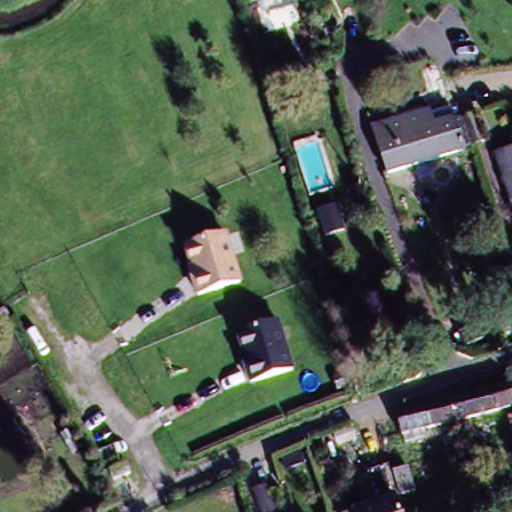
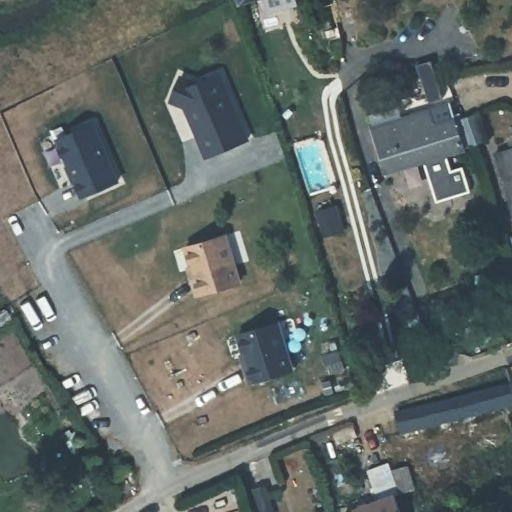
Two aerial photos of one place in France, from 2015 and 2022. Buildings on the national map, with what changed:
demolished [(253,0),(230,7),(227,0),(253,0)]
unchanged [(271,0),(244,9),(241,0),(271,0)]
unchanged [(433,61),(437,72),(442,86),(444,91),(446,96),(446,97),(432,102),(423,76),(419,66),(433,61)]
new [(200,82),(220,71),(250,140),(207,159),(186,107),(171,100),(181,73),(200,82)]
unchanged [(355,85),(358,97),(347,100),(345,88),(355,85)]
unchanged [(430,109),(434,117),(450,112),(451,112),(463,149),(462,149),(386,174),(371,126),(430,109)]
unchanged [(461,124),(477,118),(485,142),(468,147),(461,124)]
new [(120,182),(82,199),(54,136),(94,119),(120,182)]
new [(447,154),(451,172),(463,169),(469,192),(436,202),(424,162),(447,154)]
unchanged [(498,161),(512,156),(512,198),(498,161)]
new [(336,206),(343,231),(325,236),(317,211),(336,206)]
unchanged [(242,284),(200,296),(186,246),(228,232),(242,284)]
unchanged [(295,368),(249,381),(235,335),(280,320),(295,368)]
unchanged [(420,430),(405,435),(393,409),(431,396),(505,371),(511,390),(436,414),(417,421),(420,430)]
unchanged [(115,477),(109,468),(122,460),(127,469),(115,477)]
unchanged [(347,509),(379,497),(369,467),(387,461),(404,512),(348,512),(347,509)]
unchanged [(415,474),(421,494),(407,499),(400,478),(415,474)]

